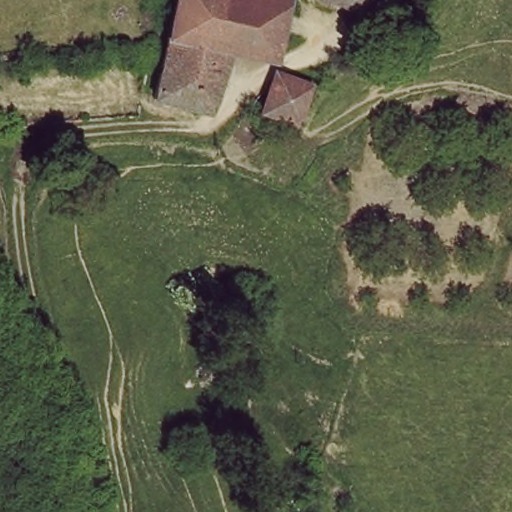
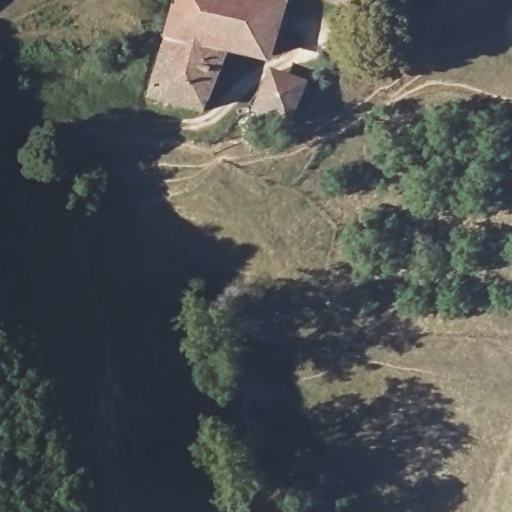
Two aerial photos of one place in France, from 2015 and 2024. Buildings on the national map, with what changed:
unchanged [(268,53),(216,50),(205,104),(155,99),(175,0),(273,0),(268,53)]
unchanged [(359,0),(365,0),(365,2),(359,0)]
unchanged [(262,116),(275,76),(310,85),(293,125),(262,116)]

